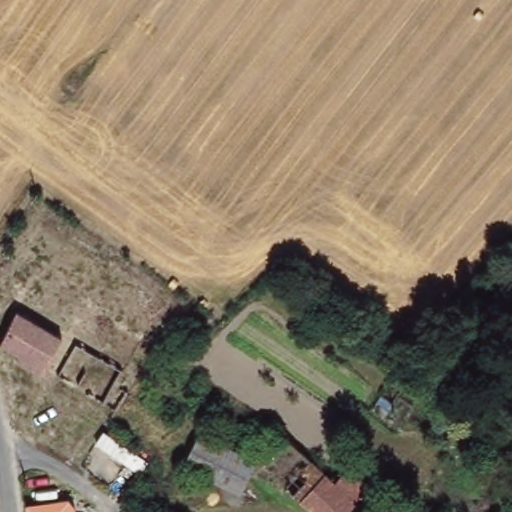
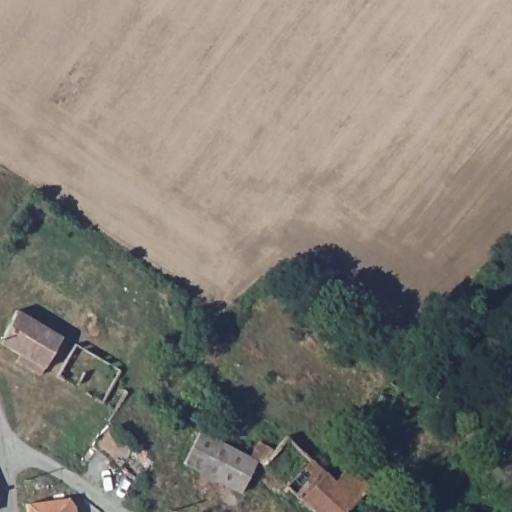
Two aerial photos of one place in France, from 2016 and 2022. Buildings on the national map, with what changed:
unchanged [(84,358),(69,382),(66,387),(0,347),(0,345),(17,310),(88,351),(84,358)]
unchanged [(396,371),(405,357),(419,365),(422,367),(412,382),(409,380),(396,371)]
unchanged [(369,409),(375,400),(388,409),(391,412),(384,419),(382,418),(369,409)]
unchanged [(258,462),(242,496),(183,466),(199,432),(258,462)]
unchanged [(310,460),(323,472),(336,482),(350,467),(371,488),(350,512),(312,512),(300,502),(287,490),(310,460)]
unchanged [(49,506),(50,502),(79,498),(84,501),(85,512),(26,512),(26,509),(49,506)]

